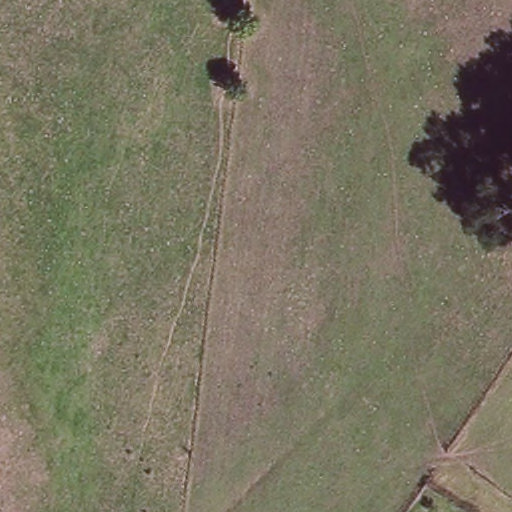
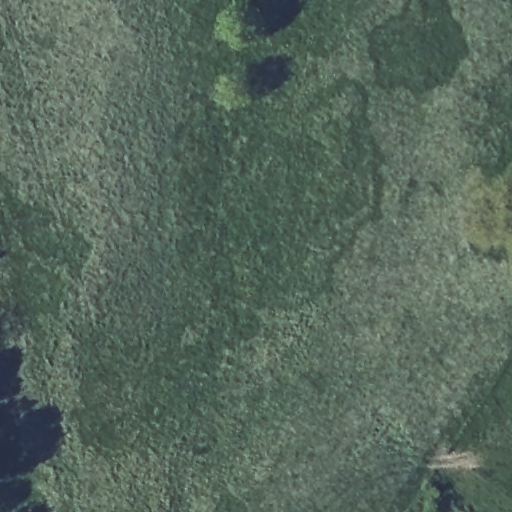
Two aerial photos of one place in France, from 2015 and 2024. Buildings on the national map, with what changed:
[]

